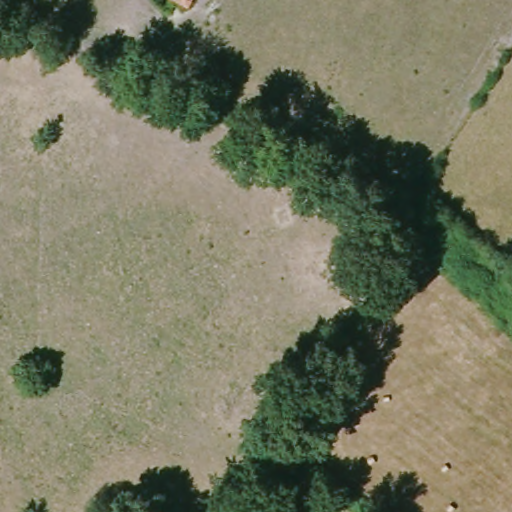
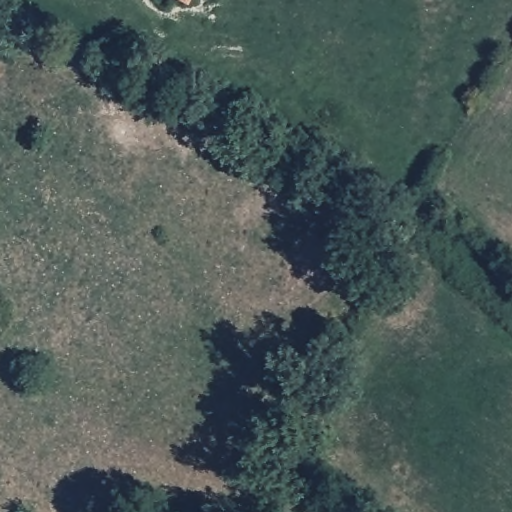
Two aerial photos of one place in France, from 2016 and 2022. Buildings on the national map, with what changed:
unchanged [(173,0),(196,0),(192,9),(173,0)]

